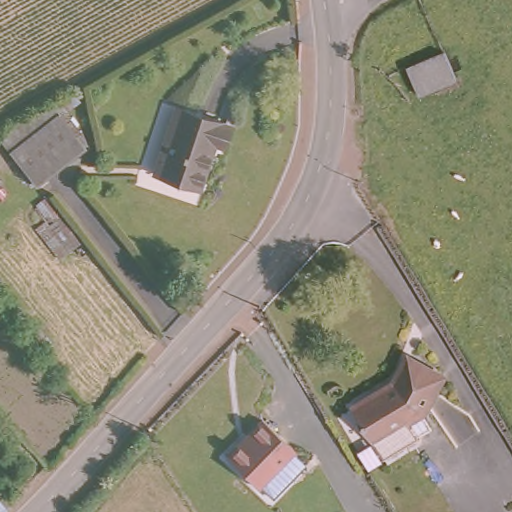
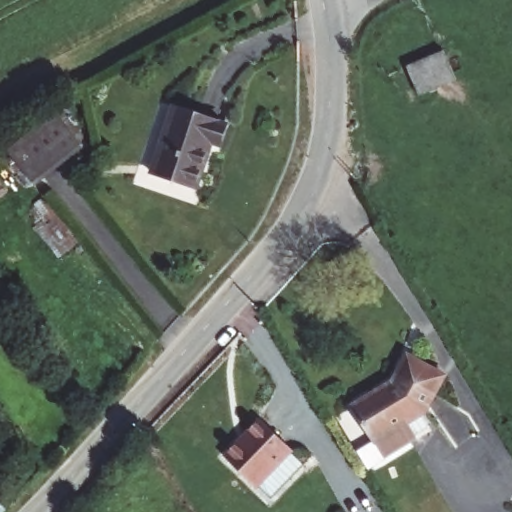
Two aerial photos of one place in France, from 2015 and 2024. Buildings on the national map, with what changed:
unchanged [(442,62),(454,90),(415,106),(405,77),(442,62)]
unchanged [(170,107),(221,122),(215,143),(207,141),(195,188),(151,176),(170,107)]
unchanged [(32,195),(8,162),(1,153),(49,116),(57,125),(82,156),(32,195)]
unchanged [(351,437),(369,427),(349,393),(390,367),(407,340),(444,363),(422,400),(395,414),(395,415),(403,432),(379,445),(361,453),(352,458),(342,441),(351,437)]
unchanged [(262,419),(296,447),(262,486),(227,457),(262,419)]

